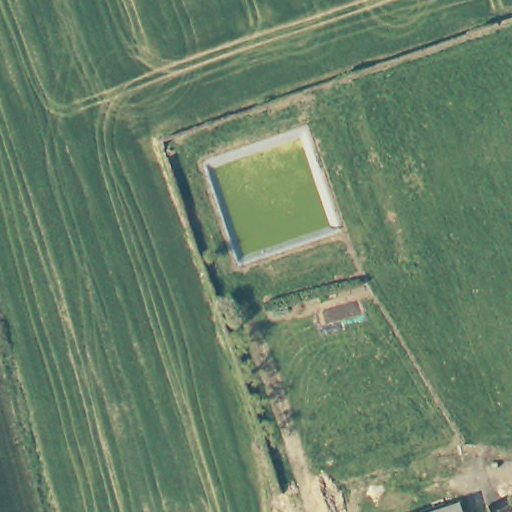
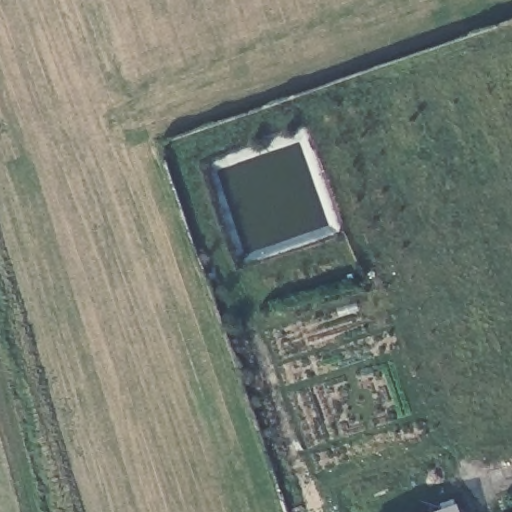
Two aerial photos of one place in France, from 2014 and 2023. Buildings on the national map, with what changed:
unchanged [(462,506),(464,512),(444,512),(462,506)]

